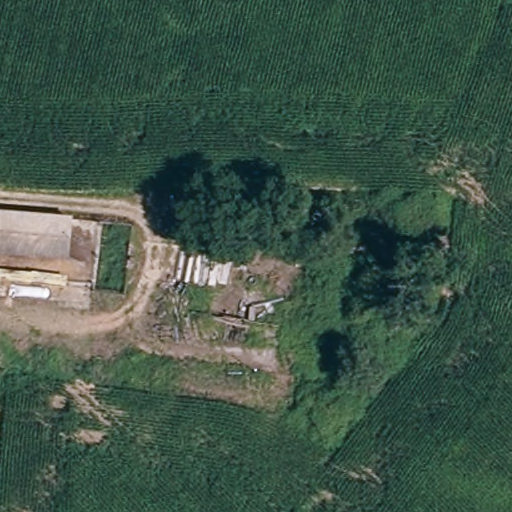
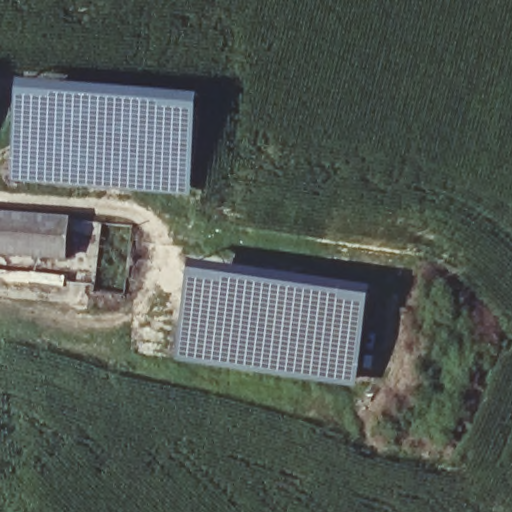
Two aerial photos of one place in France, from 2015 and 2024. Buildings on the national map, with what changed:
new [(14,179),(22,82),(200,94),(191,195),(14,179)]
unchanged [(62,215),(59,256),(0,254),(0,212),(62,215)]
new [(356,387),(176,360),(191,259),(373,286),(356,387)]

